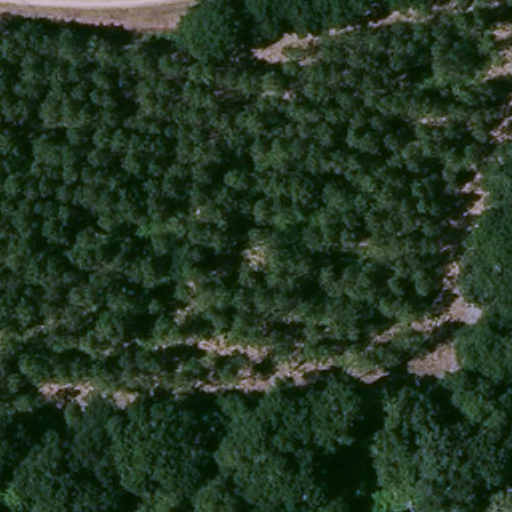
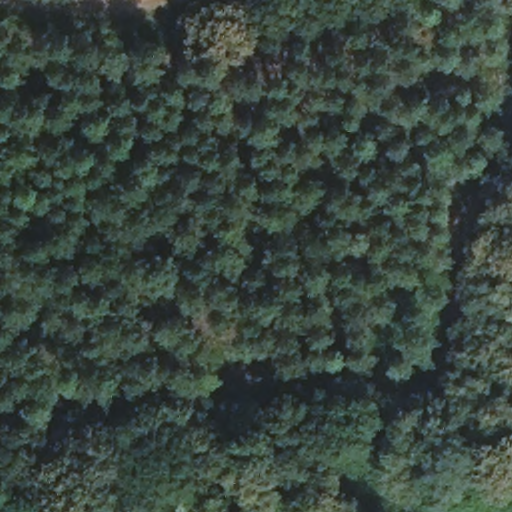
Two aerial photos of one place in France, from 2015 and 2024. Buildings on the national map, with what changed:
[]

